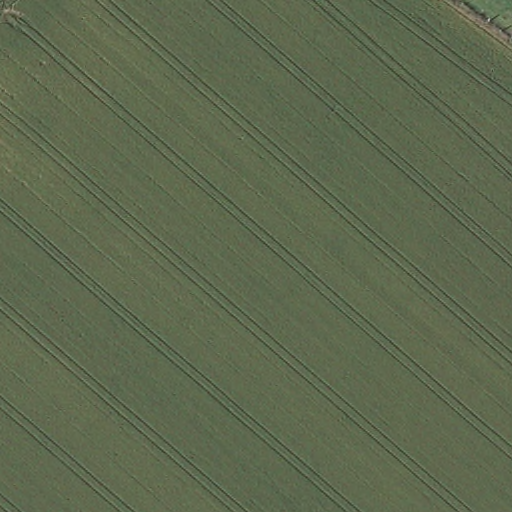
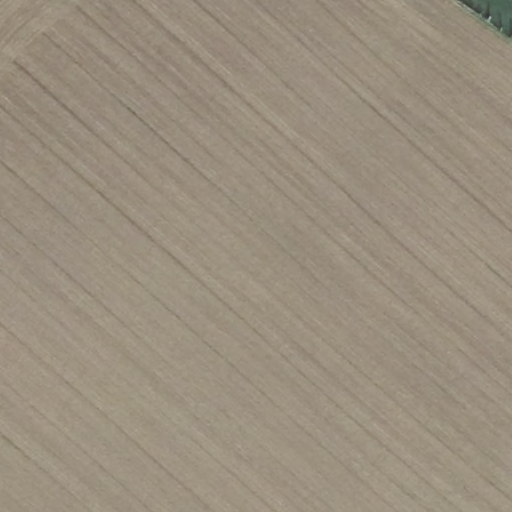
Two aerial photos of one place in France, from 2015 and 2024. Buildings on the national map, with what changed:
[]

